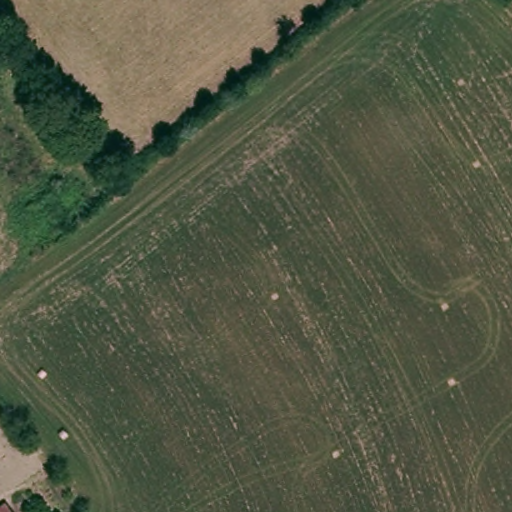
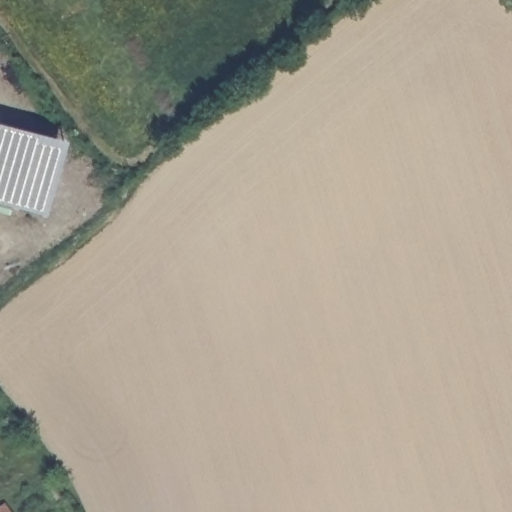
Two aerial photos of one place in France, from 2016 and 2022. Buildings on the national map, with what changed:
new [(0,204),(0,126),(64,143),(45,216),(0,204)]
unchanged [(7,502),(8,505),(10,507),(13,512),(0,512),(0,503),(5,500),(7,502)]

